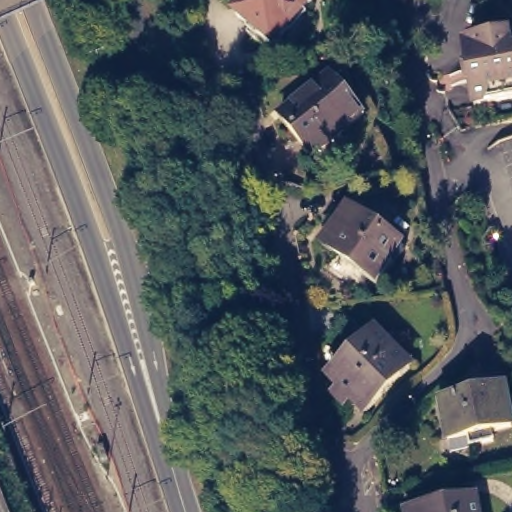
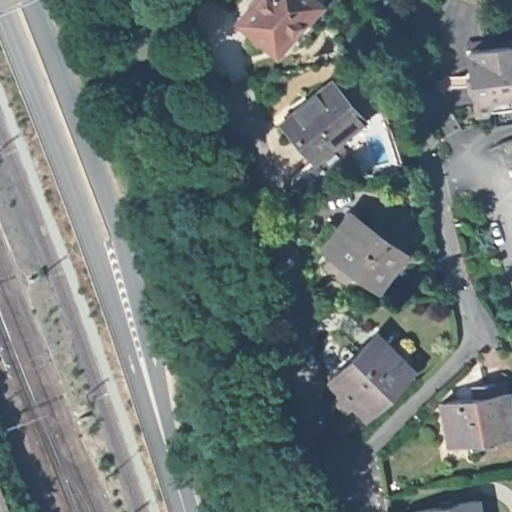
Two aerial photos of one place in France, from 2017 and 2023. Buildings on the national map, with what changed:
unchanged [(318,1),(275,50),(237,17),(252,0),(317,0),(318,1)]
unchanged [(487,103),(483,83),(473,84),(470,66),(480,65),(477,45),(512,39),(512,99),(487,103)]
unchanged [(365,117),(313,159),(281,121),(331,79),(365,117)]
unchanged [(512,139),(512,185),(500,143),(512,139)]
unchanged [(344,205),(397,245),(371,278),(319,240),(344,205)]
unchanged [(355,395),(348,401),(341,393),(348,387),(335,374),(348,361),(340,352),(351,341),(360,350),(381,328),(416,363),(370,409),(355,395)]
unchanged [(477,385),(508,380),(510,390),(512,397),(512,431),(498,433),(500,444),(475,448),(473,439),(453,441),(447,401),(479,395),(477,385)]
unchanged [(407,512),(407,511),(476,499),(479,512),(407,512)]

